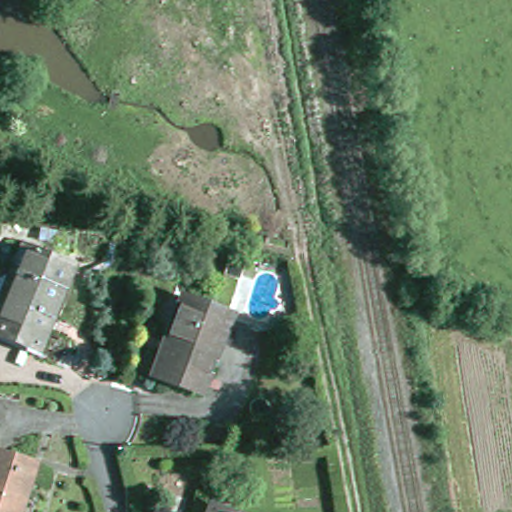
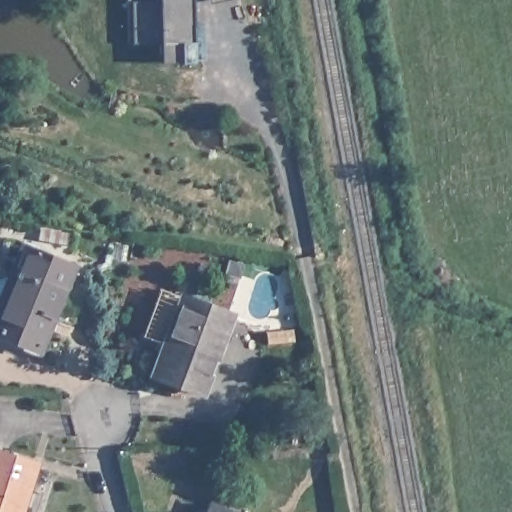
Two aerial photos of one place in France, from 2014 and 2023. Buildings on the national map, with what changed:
new [(192,24),(202,23),(202,59),(194,59),(179,60),(161,60),(160,42),(132,41),(127,41),(127,0),(191,0),(192,24)]
new [(210,2),(210,0),(221,0),(210,2)]
unchanged [(0,277),(11,271),(20,247),(72,269),(52,320),(49,319),(37,348),(0,334),(0,315),(2,310),(0,310),(0,277)]
unchanged [(229,317),(199,392),(154,375),(183,298),(229,317)]
unchanged [(27,481),(23,480),(22,485),(24,487),(16,512),(0,512),(0,453),(32,465),(27,481)]
unchanged [(208,512),(211,506),(225,512),(208,512)]

